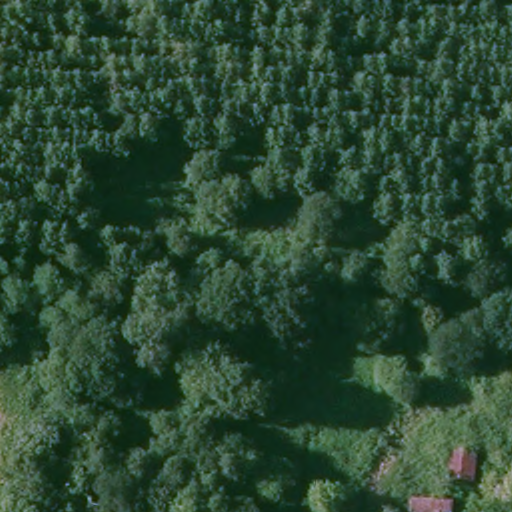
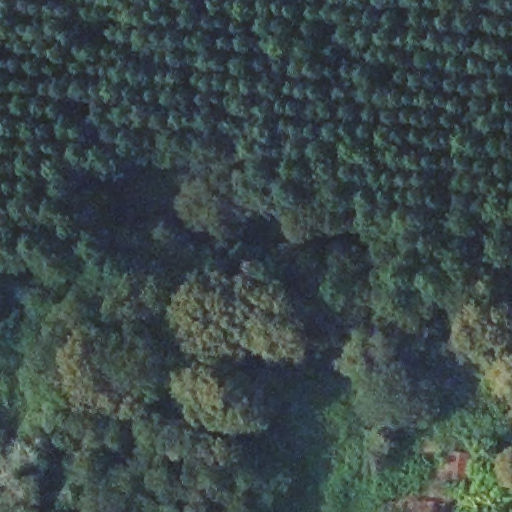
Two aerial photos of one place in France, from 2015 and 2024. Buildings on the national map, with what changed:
unchanged [(475,455),(471,485),(444,481),(447,450),(475,455)]
unchanged [(450,512),(392,512),(392,500),(450,502),(450,512)]

